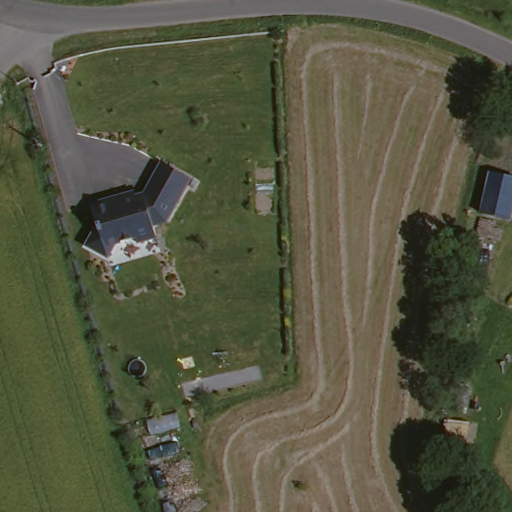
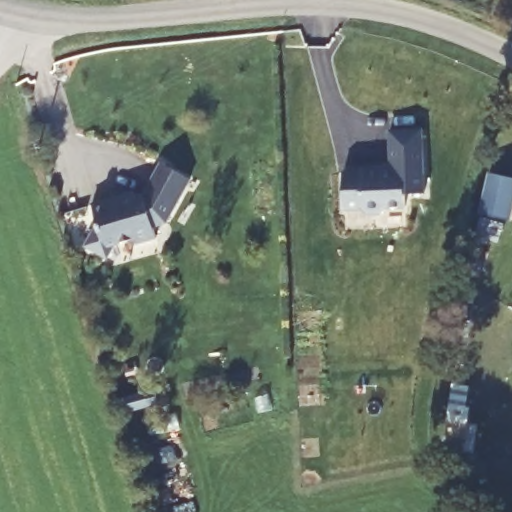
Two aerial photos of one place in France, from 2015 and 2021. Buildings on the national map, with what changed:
new [(363,168),(363,165),(381,165),(385,167),(394,167),(392,127),(425,126),(427,190),(407,191),(408,204),(388,204),(385,210),(369,210),(365,205),(347,206),(346,168),(363,168)]
unchanged [(124,241),(126,251),(92,257),(86,233),(100,227),(96,205),(144,193),(164,158),(198,180),(165,232),(124,241)]
new [(512,173),(512,216),(483,208),(493,168),(512,173)]

